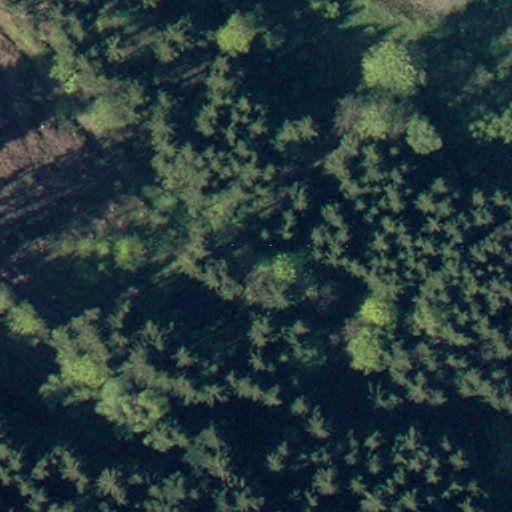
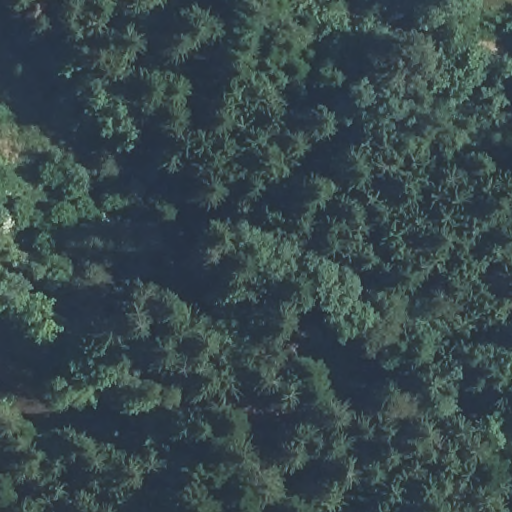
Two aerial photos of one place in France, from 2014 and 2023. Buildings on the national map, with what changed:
unchanged [(87,249),(84,260),(72,257),(77,246),(87,249)]
unchanged [(28,369),(22,379),(50,397),(37,417),(0,395),(0,351),(28,369)]

